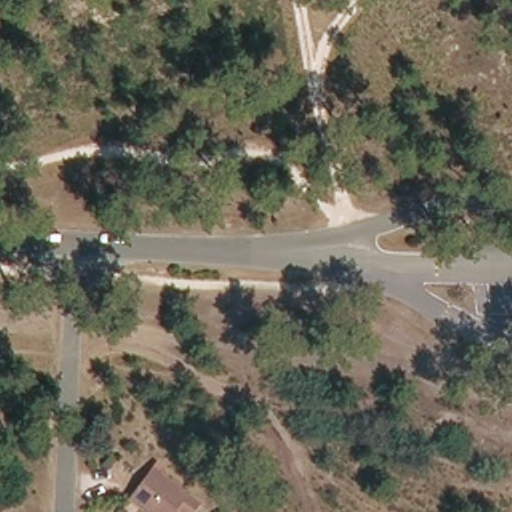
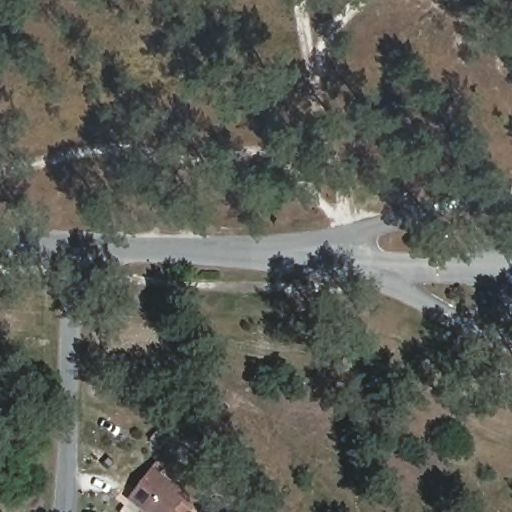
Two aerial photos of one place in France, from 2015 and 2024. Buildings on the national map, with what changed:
unchanged [(132,502),(127,499),(131,494),(132,493),(150,471),(195,505),(190,512),(175,512),(171,509),(170,512),(142,512),(130,504),(132,502)]

